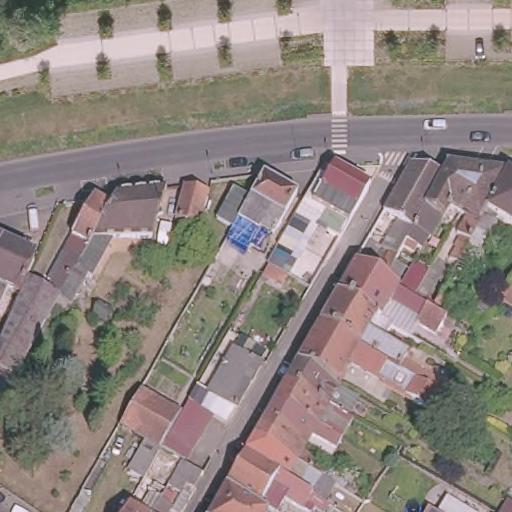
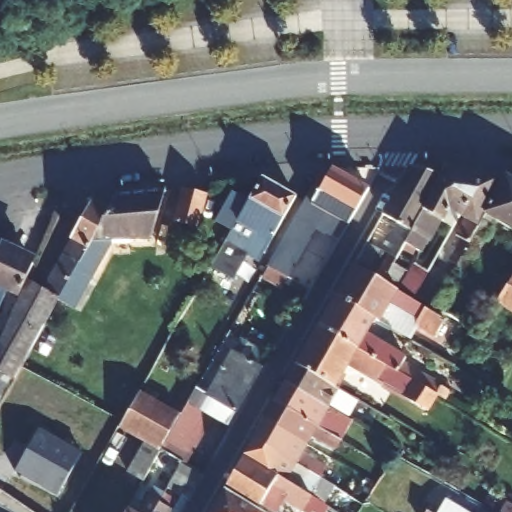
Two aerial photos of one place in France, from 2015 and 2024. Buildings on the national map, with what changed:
unchanged [(417,298),(415,297),(389,281),(430,204),(442,179),(447,169),(485,174),(462,217),(453,212),(445,224),(442,223),(420,255),(415,252),(407,266),(414,270),(416,268),(430,275),(417,298)]
unchanged [(368,244),(383,253),(398,223),(385,215),(410,170),(442,179),(430,204),(389,281),(379,274),(358,262),(368,244)]
unchanged [(341,243),(328,235),(330,233),(320,225),(326,213),(315,205),(334,172),(337,172),(370,192),(341,243)]
unchanged [(485,174),(507,178),(465,254),(458,267),(450,263),(457,250),(455,249),(460,239),(458,238),(467,219),(462,217),(485,174)]
unchanged [(512,232),(496,223),(475,259),(465,254),(507,178),(512,181),(512,232)]
unchanged [(228,240),(263,179),(296,199),(262,255),(248,247),(256,234),(244,225),(235,239),(240,242),(220,274),(212,269),(228,240)]
unchanged [(151,231),(112,232),(78,298),(62,289),(110,200),(116,189),(165,181),(151,231)]
unchanged [(209,196),(198,230),(176,224),(186,189),(209,196)]
unchanged [(110,200),(62,289),(48,282),(51,275),(48,274),(94,193),(110,200)]
unchanged [(310,211),(304,222),(315,229),(313,233),(316,234),(307,249),(286,237),(304,207),(310,211)]
unchanged [(3,235),(0,243),(0,234),(3,235)]
unchanged [(27,271),(20,287),(10,283),(0,303),(0,243),(3,235),(18,242),(15,247),(34,255),(27,271)]
unchanged [(338,298),(356,267),(445,323),(435,339),(417,329),(411,342),(393,330),(338,298)]
unchanged [(62,289),(18,370),(0,362),(0,329),(20,287),(27,271),(48,282),(62,289)]
unchanged [(512,283),(512,314),(497,305),(512,283)]
unchanged [(395,424),(419,386),(396,371),(322,326),(338,298),(393,330),(384,344),(407,359),(404,364),(451,394),(446,402),(437,397),(415,436),(395,424)]
unchanged [(477,335),(464,328),(480,300),(495,309),(477,335)]
unchanged [(300,366),(322,326),(396,371),(390,379),(383,374),(378,383),(351,366),(337,389),(300,366)]
unchanged [(210,394),(235,352),(263,369),(237,414),(234,413),(226,426),(190,405),(200,389),(210,394)]
unchanged [(18,370),(0,403),(0,362),(18,370)]
unchanged [(288,385),(300,366),(337,389),(342,392),(338,399),(352,408),(350,412),(358,418),(355,424),(288,385)]
unchanged [(278,404),(288,385),(355,424),(351,429),(342,424),(340,427),(326,419),(321,429),(278,404)]
unchanged [(161,454),(161,456),(160,456),(119,431),(140,394),(182,419),(168,444),(204,465),(198,475),(205,479),(198,493),(176,479),(183,467),(161,454)]
unchanged [(268,422),(278,404),(321,429),(343,442),(340,447),(331,443),(329,447),(315,439),(311,447),(268,422)]
new [(168,444),(182,419),(190,405),(214,419),(190,457),(168,444)]
unchanged [(258,438),(268,422),(311,447),(307,454),(320,462),(317,467),(325,472),(322,478),(258,438)]
new [(39,429),(82,452),(57,495),(15,472),(39,429)]
unchanged [(318,484),(310,480),(304,490),(248,456),(258,438),(322,478),(318,484)]
unchanged [(332,512),(318,512),(307,512),(288,501),(281,512),(274,512),(265,507),(261,512),(260,512),(228,491),(248,456),(304,490),(334,509),(332,512)]
unchanged [(158,512),(143,512),(158,487),(168,493),(158,512)]
unchanged [(228,491),(260,512),(216,512),(228,491)]
unchanged [(168,493),(180,499),(172,512),(158,512),(168,493)]
unchanged [(512,502),(512,512),(501,512),(508,500),(512,502)]
unchanged [(468,512),(450,512),(455,504),(468,512)]
unchanged [(130,510),(133,512),(128,512),(130,510)]
unchanged [(432,510),(436,512),(431,512),(432,510)]

